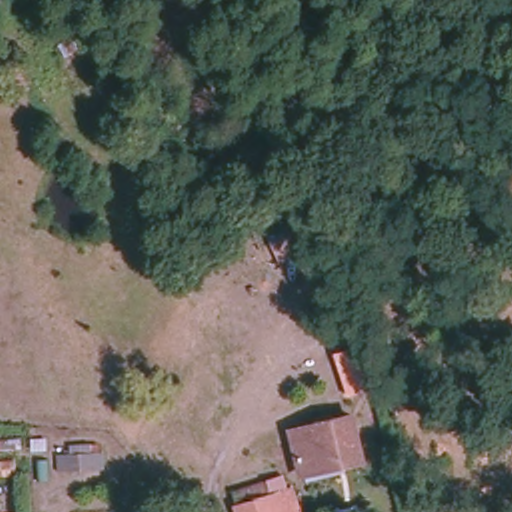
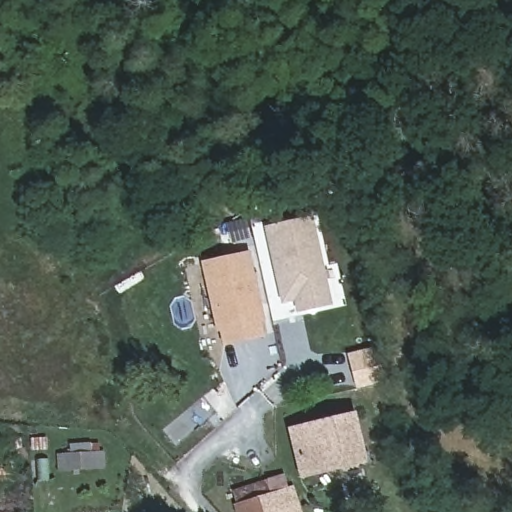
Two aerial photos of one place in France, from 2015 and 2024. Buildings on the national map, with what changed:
new [(327,298),(285,307),(268,233),(311,223),(327,298)]
new [(262,327),(259,328),(262,343),(221,352),(218,336),(215,337),(200,271),(247,260),(262,327)]
new [(330,310),(300,317),(296,304),(327,298),(330,310)]
unchanged [(302,465),(294,428),(355,414),(365,461),(350,464),(305,475),(302,465)]
unchanged [(109,447),(110,463),(64,466),(64,450),(109,447)]
unchanged [(238,512),(237,510),(240,509),(235,495),(266,486),(270,499),(293,492),(300,512),(238,512)]

